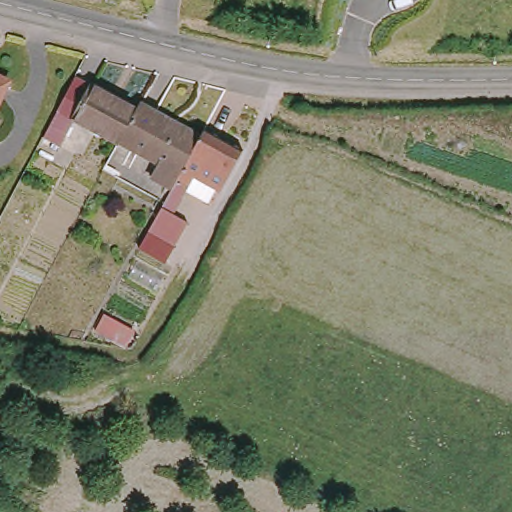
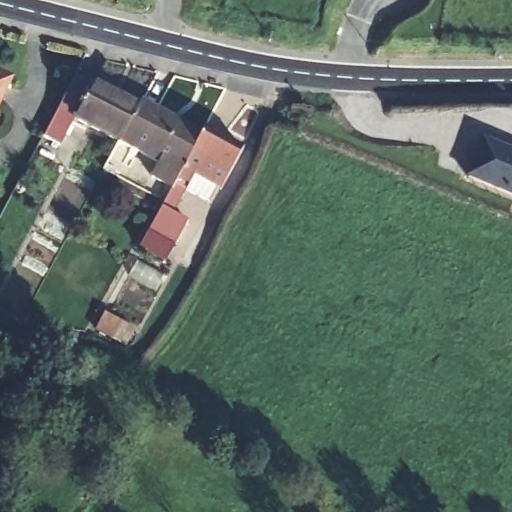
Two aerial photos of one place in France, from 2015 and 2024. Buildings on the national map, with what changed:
unchanged [(0,101),(0,79),(8,82),(0,101)]
unchanged [(120,148),(72,126),(58,151),(45,144),(57,120),(77,81),(140,109),(123,144),(120,148)]
unchanged [(172,185),(151,176),(157,161),(123,144),(140,109),(142,107),(202,134),(172,185)]
unchanged [(235,173),(234,175),(207,162),(189,192),(172,185),(202,134),(205,127),(248,149),(235,173)]
new [(512,150),(512,198),(465,178),(482,137),(512,150)]
unchanged [(176,216),(186,220),(172,246),(149,232),(172,185),(189,192),(176,216)]

